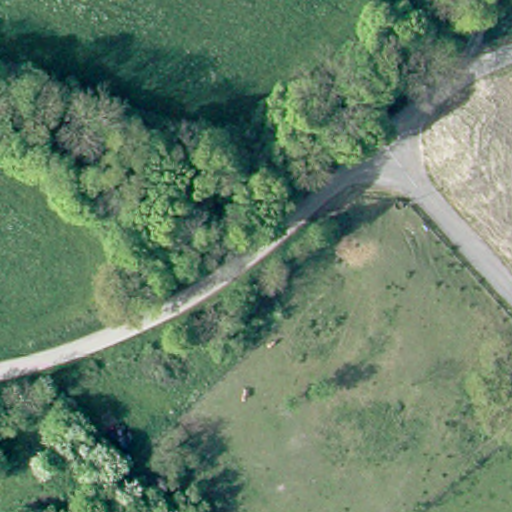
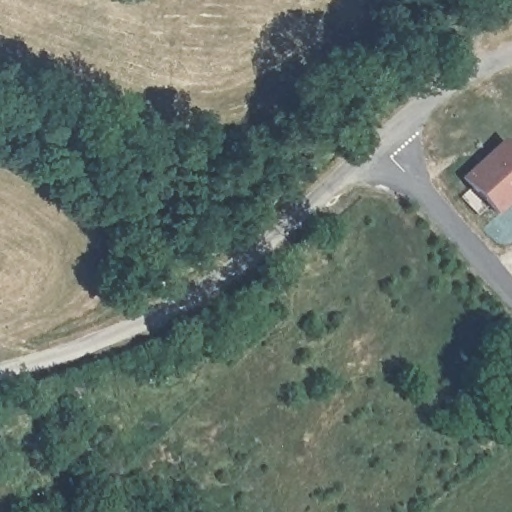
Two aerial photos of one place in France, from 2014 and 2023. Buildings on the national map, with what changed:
new [(461,177),(503,137),(512,147),(512,200),(497,213),(461,177)]
unchanged [(190,330),(214,317),(222,333),(201,343),(190,330)]

